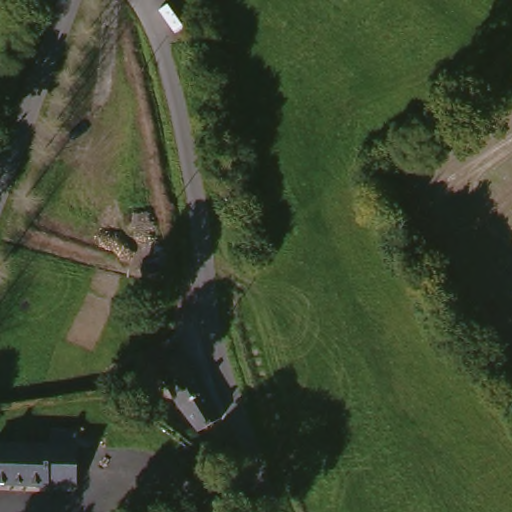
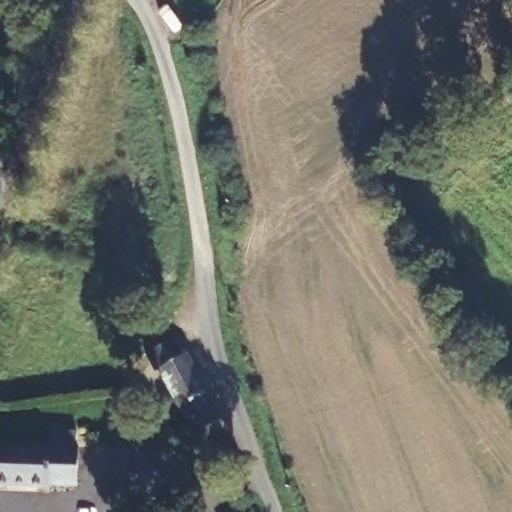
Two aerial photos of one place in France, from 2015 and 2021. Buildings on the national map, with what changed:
unchanged [(201,445),(188,418),(183,421),(163,381),(189,365),(224,435),(201,445)]
unchanged [(71,450),(70,485),(0,484),(0,449),(71,450)]

